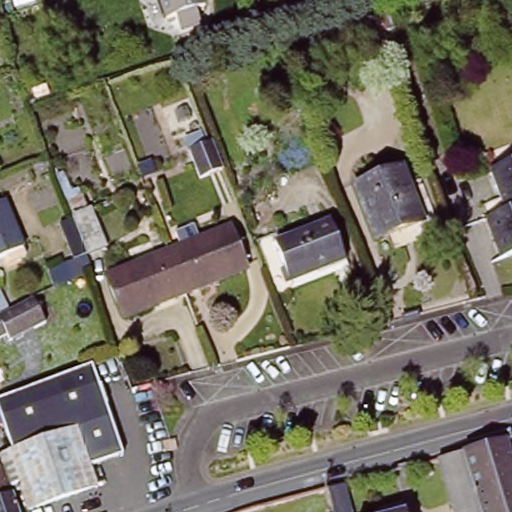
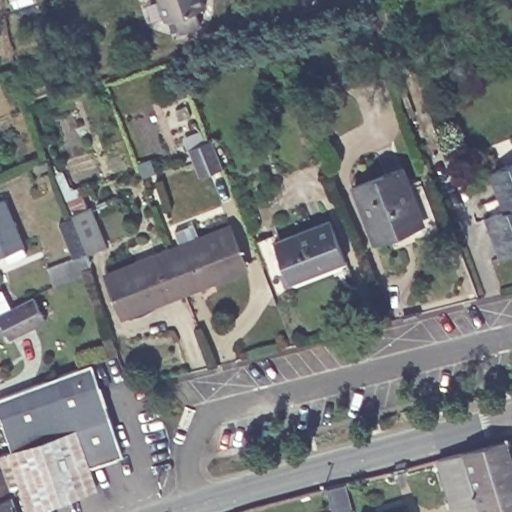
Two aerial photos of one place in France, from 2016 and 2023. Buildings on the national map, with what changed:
unchanged [(195,14),(200,30),(180,36),(175,21),(165,24),(157,0),(198,0),(202,12),(195,14)]
unchanged [(196,177),(181,140),(208,130),(223,167),(196,177)]
unchanged [(512,165),(512,211),(500,215),(485,175),(512,165)]
unchanged [(400,171),(419,223),(375,240),(354,187),(400,171)]
unchanged [(3,204),(25,258),(9,264),(5,257),(0,259),(0,204),(3,204)]
unchanged [(58,225),(73,220),(72,217),(92,209),(108,247),(87,256),(74,261),(58,225)]
unchanged [(500,215),(512,211),(512,256),(496,262),(481,222),(500,215)]
unchanged [(324,225),(339,266),(283,287),(267,246),(324,225)]
unchanged [(165,254),(227,230),(242,270),(180,292),(165,254)]
unchanged [(119,316),(104,276),(165,254),(180,292),(119,316)]
unchanged [(9,313),(33,300),(46,324),(10,342),(7,335),(0,338),(0,294),(9,313)]
unchanged [(90,364),(122,457),(86,472),(70,424),(67,425),(66,422),(49,428),(53,440),(8,456),(0,435),(0,432),(21,423),(18,416),(34,410),(27,390),(90,364)]
unchanged [(27,390),(34,410),(18,416),(21,423),(0,432),(0,400),(27,390)]
unchanged [(8,456),(53,440),(49,428),(66,422),(67,425),(70,424),(86,472),(92,490),(30,512),(0,512),(0,459),(8,456)]
unchanged [(434,457),(447,455),(503,440),(509,460),(512,470),(512,512),(450,512),(434,457)]
unchanged [(328,487),(340,483),(347,512),(334,512),(328,487)]
unchanged [(406,510),(407,512),(399,512),(406,510)]

